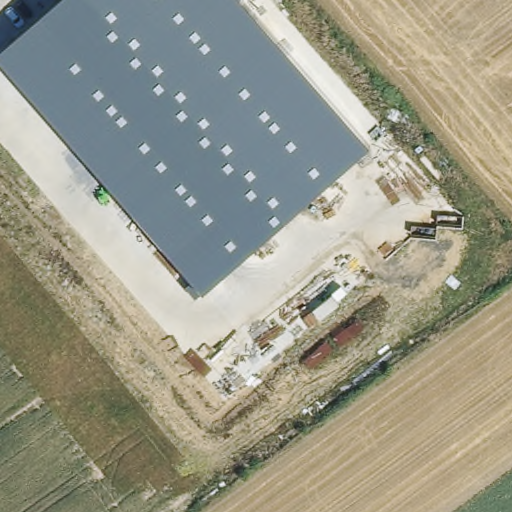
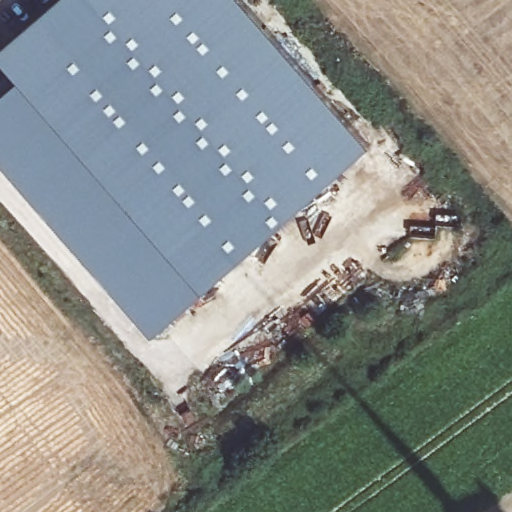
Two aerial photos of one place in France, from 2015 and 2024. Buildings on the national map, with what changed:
unchanged [(203,291),(18,78),(0,59),(0,49),(56,0),(243,0),(371,146),(203,291)]
new [(0,93),(18,78),(203,291),(159,329),(0,146),(0,93)]

